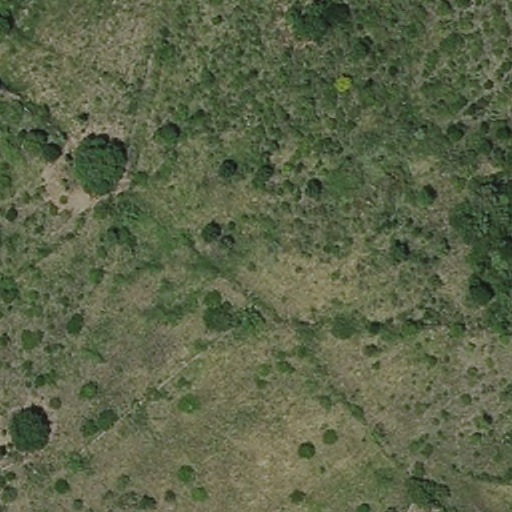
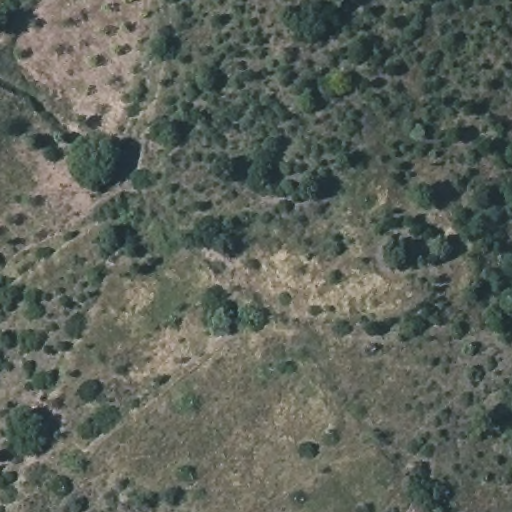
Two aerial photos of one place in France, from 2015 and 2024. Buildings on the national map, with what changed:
[]

